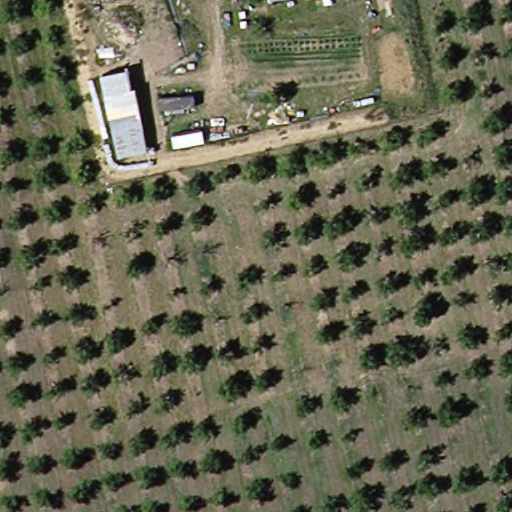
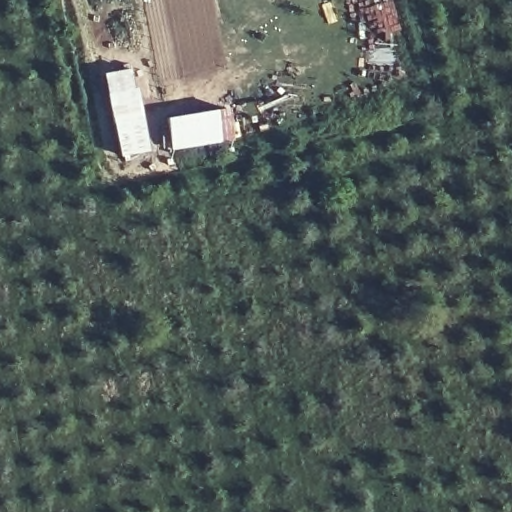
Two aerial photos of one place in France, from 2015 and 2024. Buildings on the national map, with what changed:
demolished [(276,0),(279,0),(276,1),(276,0)]
unchanged [(137,87),(149,152),(118,159),(105,95),(137,87)]
new [(227,109),(233,141),(171,150),(165,119),(227,109)]

